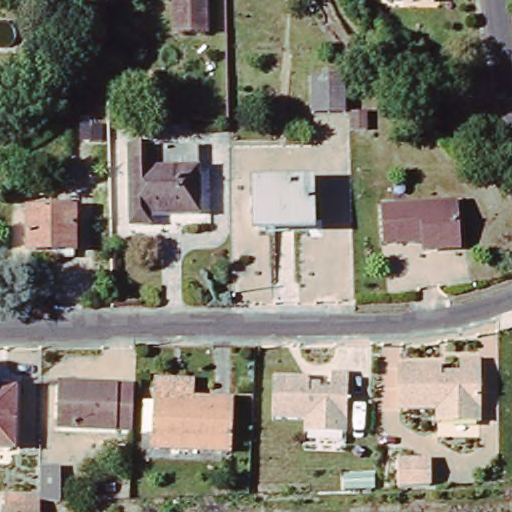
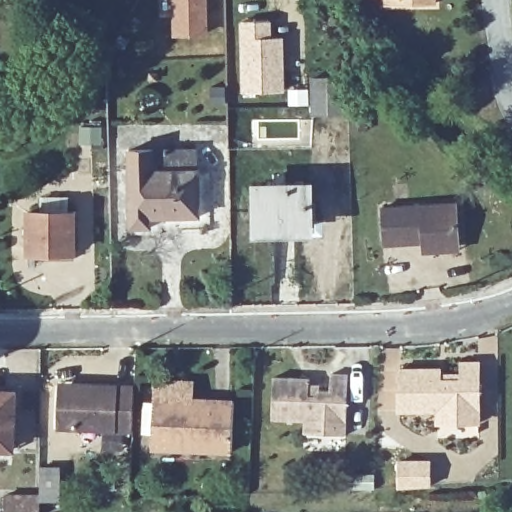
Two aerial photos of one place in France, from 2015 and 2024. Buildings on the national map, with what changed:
unchanged [(206,31),(173,31),(172,0),(205,0),(206,31)]
unchanged [(389,0),(436,0),(436,1),(405,1),(389,2),(389,0)]
new [(277,90),(237,91),(236,20),(263,19),(263,37),(275,36),(277,90)]
unchanged [(340,75),(340,111),(314,111),(313,75),(340,75)]
unchanged [(162,152),(192,151),(194,172),(197,173),(197,218),(144,219),(145,228),(131,229),(129,152),(150,152),(151,170),(162,170),(162,152)]
unchanged [(250,210),(250,200),(256,199),(256,186),(308,186),(309,231),(257,232),(257,210),(250,210)]
unchanged [(382,241),(380,205),(456,202),(457,238),(457,249),(421,250),(420,240),(382,241)]
unchanged [(29,210),(74,210),(74,251),(29,251),(29,210)]
unchanged [(466,372),(466,360),(483,360),(483,419),(443,419),(443,407),(404,407),(404,367),(444,366),(444,372),(466,372)]
unchanged [(311,426),(278,424),(280,383),(315,384),(314,400),(320,400),(324,395),(336,395),(337,379),(354,379),(351,439),(310,438),(311,426)]
unchanged [(129,427),(55,425),(55,389),(55,383),(94,384),(129,385),(129,427)]
unchanged [(192,402),(229,403),(228,455),(149,454),(151,384),(193,385),(192,402)]
unchanged [(14,449),(0,449),(0,396),(14,396),(14,449)]
unchanged [(434,457),(434,488),(402,491),(403,457),(434,457)]
unchanged [(39,468),(60,468),(61,500),(40,500),(40,512),(8,512),(8,501),(8,495),(40,494),(39,468)]

